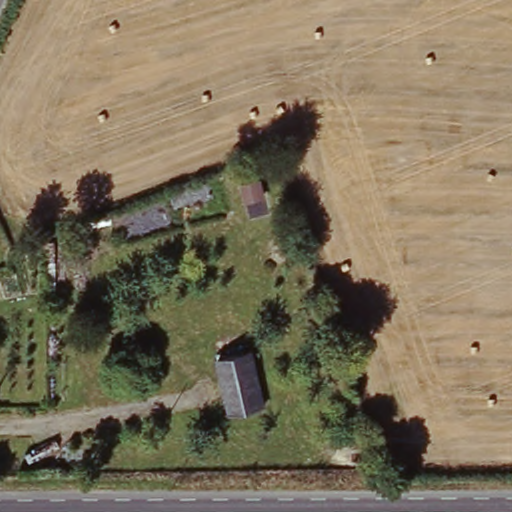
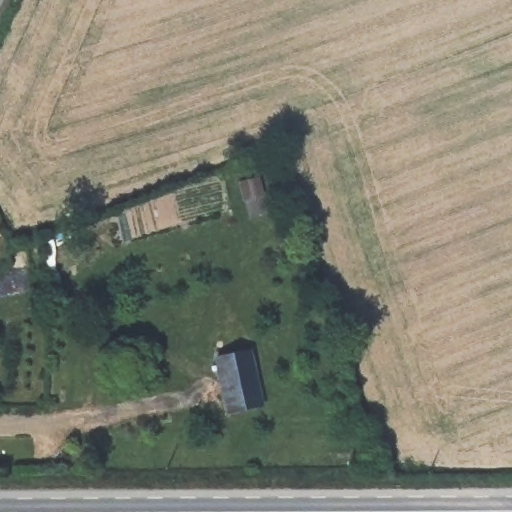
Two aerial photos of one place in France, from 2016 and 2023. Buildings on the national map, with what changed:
unchanged [(258,349),(270,403),(234,411),(223,357),(258,349)]

